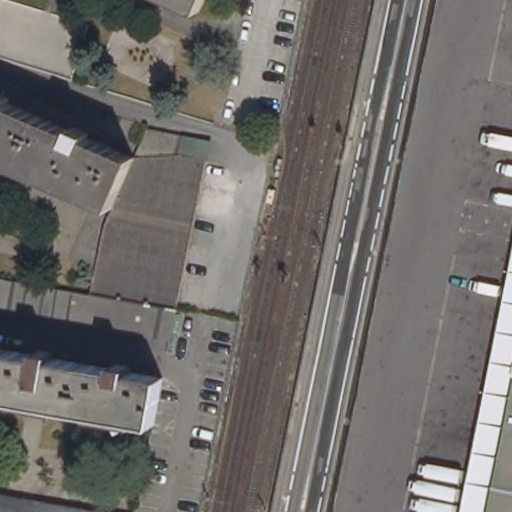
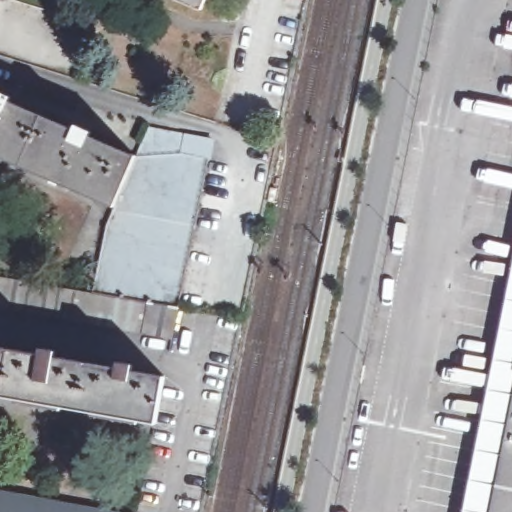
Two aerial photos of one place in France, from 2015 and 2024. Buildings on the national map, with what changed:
unchanged [(181,0),(207,0),(203,9),(181,0)]
unchanged [(0,157),(0,91),(13,96),(10,101),(75,129),(77,125),(93,131),(90,135),(136,155),(153,127),(211,138),(213,138),(211,151),(209,157),(203,187),(179,307),(179,308),(144,301),(123,297),(121,297),(94,292),(109,222),(117,206),(115,206),(0,157)]
unchanged [(70,288),(94,292),(121,297),(123,297),(144,301),(179,308),(178,308),(173,338),(171,338),(158,335),(156,335),(144,333),(138,332),(0,307),(0,275),(6,276),(70,288)]
unchanged [(512,278),(512,396),(488,512),(464,512),(512,278)]
unchanged [(35,347),(56,351),(54,357),(111,367),(112,361),(133,365),(131,371),(164,377),(163,382),(158,413),(156,422),(0,394),(0,347),(34,353),(35,347)]
unchanged [(512,396),(512,512),(488,512),(512,396)]
unchanged [(0,492),(11,494),(29,497),(114,512),(0,512),(0,492)]

